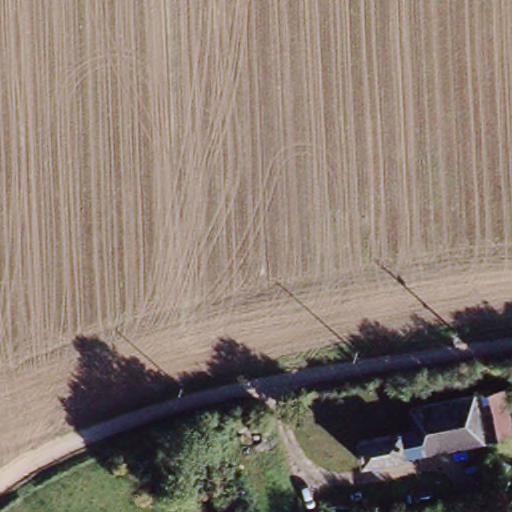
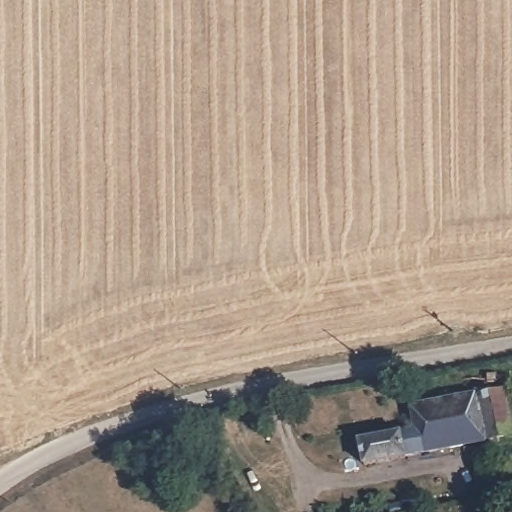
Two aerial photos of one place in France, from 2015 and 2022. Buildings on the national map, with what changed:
unchanged [(501,389),(511,433),(486,439),(475,394),(501,389)]
unchanged [(486,439),(366,465),(359,438),(418,425),(414,409),(475,394),(486,439)]

